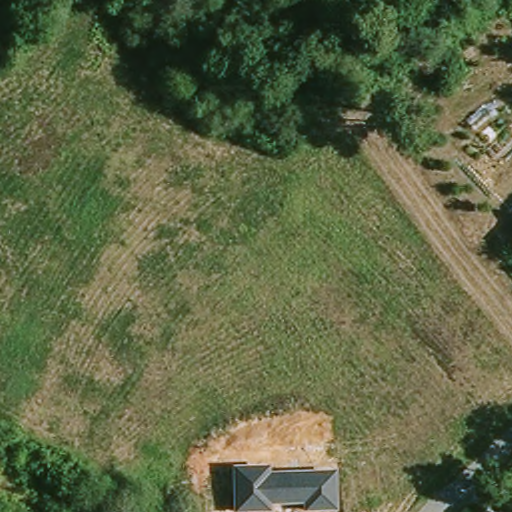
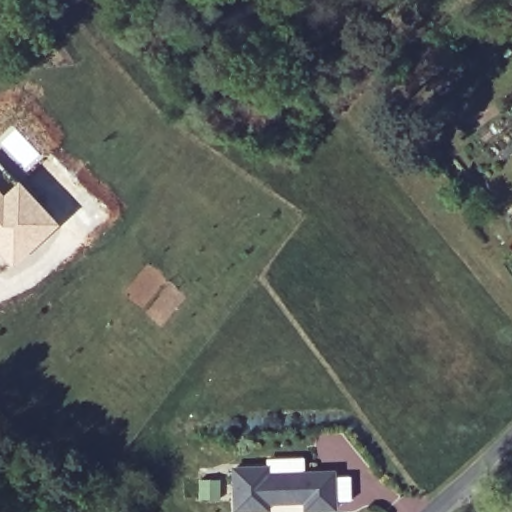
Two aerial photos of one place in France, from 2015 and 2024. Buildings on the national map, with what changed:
new [(19,179),(60,223),(10,268),(0,257),(0,189),(3,192),(19,179)]
unchanged [(269,466),(270,476),(335,473),(337,509),(304,510),(304,503),(271,504),(271,509),(234,511),(232,468),(269,466)]

